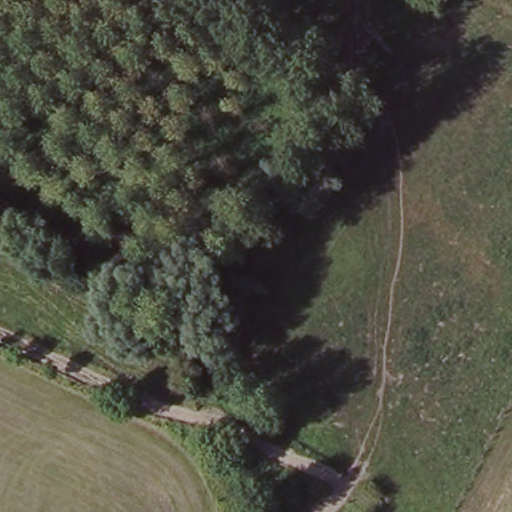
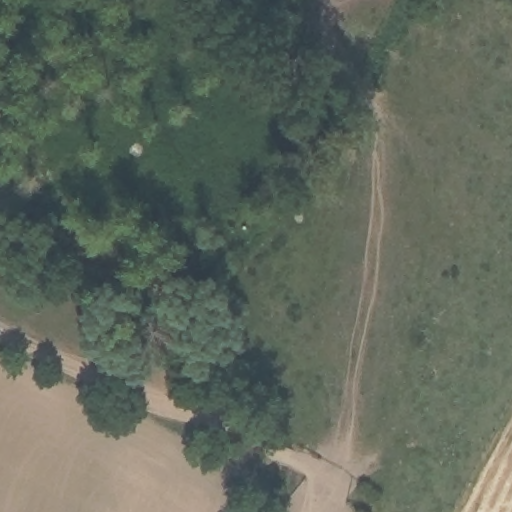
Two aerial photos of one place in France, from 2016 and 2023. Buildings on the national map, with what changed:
unchanged [(272,502),(270,501),(281,471),(284,469),(312,481),(302,511),(272,502)]

